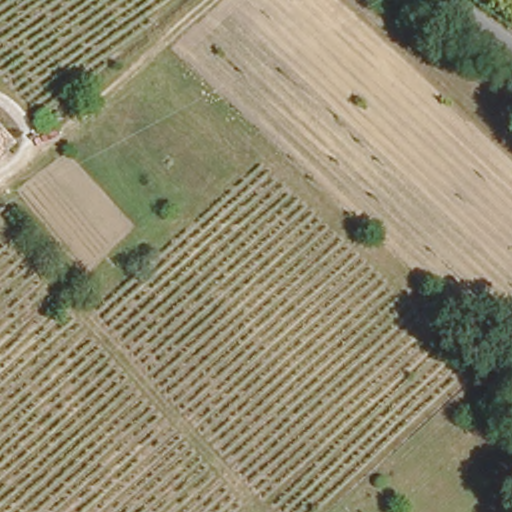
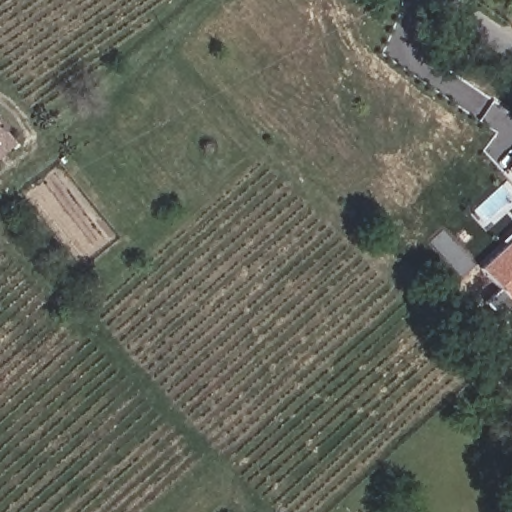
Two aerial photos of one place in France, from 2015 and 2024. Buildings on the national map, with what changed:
unchanged [(0,149),(0,126),(8,134),(13,138),(0,149)]
new [(512,164),(512,175),(507,169),(512,164)]
new [(512,239),(512,304),(480,269),(512,239)]

